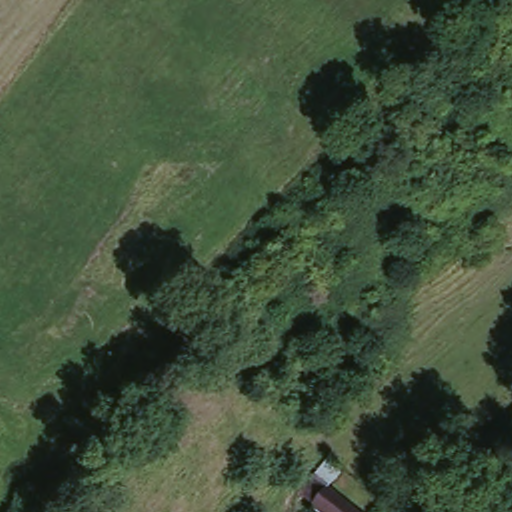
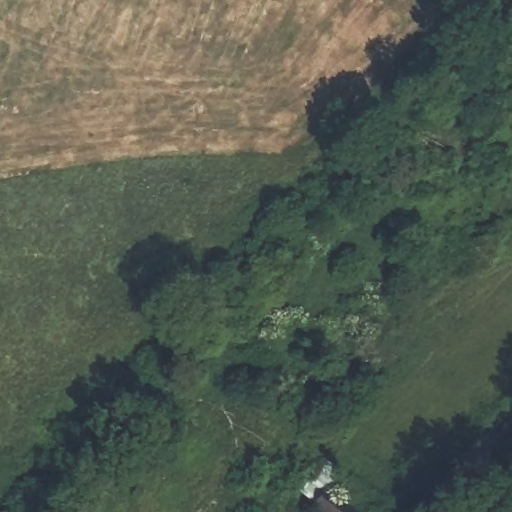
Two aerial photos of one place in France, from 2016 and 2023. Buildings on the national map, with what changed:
unchanged [(328,483),(361,512),(320,512),(309,503),(328,483)]

